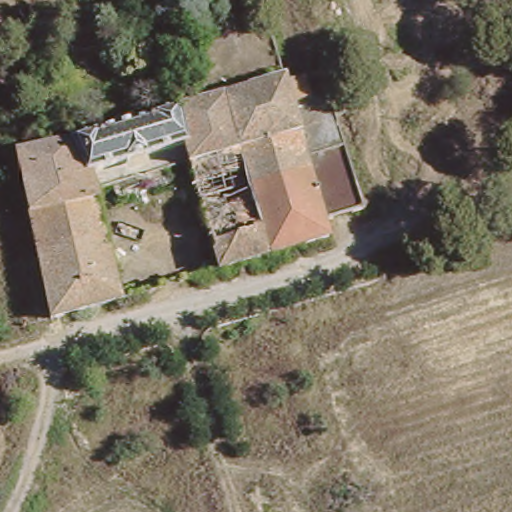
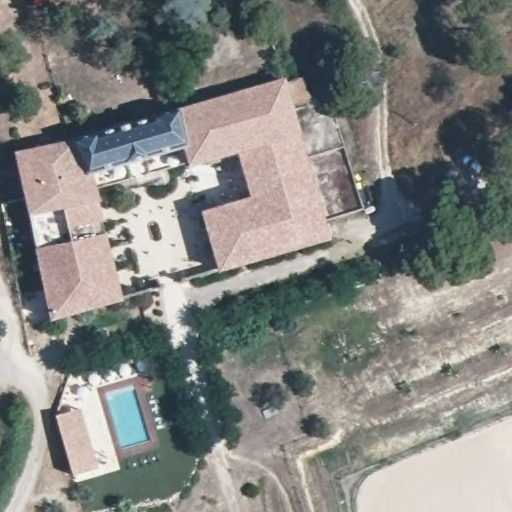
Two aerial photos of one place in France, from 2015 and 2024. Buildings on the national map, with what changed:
unchanged [(183,146),(87,174),(90,189),(118,301),(50,320),(10,153),(75,144),(175,114),(285,82),(297,125),(332,115),(335,118),(360,212),(322,222),(327,240),(217,272),(187,161),(183,146)]
unchanged [(211,274),(199,277),(196,268),(208,265),(211,274)]
unchanged [(137,295),(123,299),(122,290),(135,287),(137,295)]
new [(81,410),(98,467),(72,474),(56,415),(81,410)]

